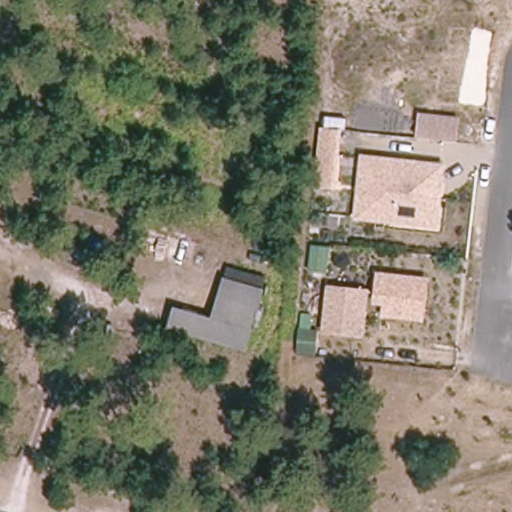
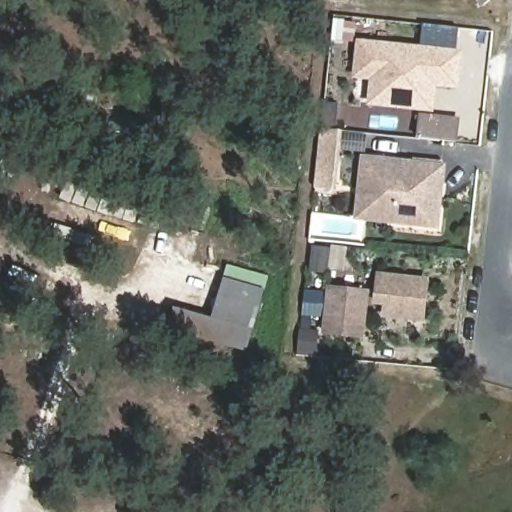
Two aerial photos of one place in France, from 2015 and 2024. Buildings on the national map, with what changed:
unchanged [(483,9),(472,0),(491,0),(483,9)]
new [(463,50),(458,90),(437,88),(435,112),(419,110),(366,105),(368,80),(352,78),(356,39),(463,50)]
unchanged [(457,143),(415,139),(419,110),(458,114),(457,143)]
unchanged [(341,190),(311,189),(317,126),(344,128),(341,190)]
unchanged [(439,227),(354,219),(361,153),(446,162),(439,227)]
unchanged [(422,325),(380,319),(381,306),(371,305),(375,271),(428,278),(422,325)]
unchanged [(263,290),(246,348),(167,327),(174,307),(212,318),(223,278),(263,290)]
unchanged [(326,289),(363,293),(358,338),(321,333),(326,289)]

